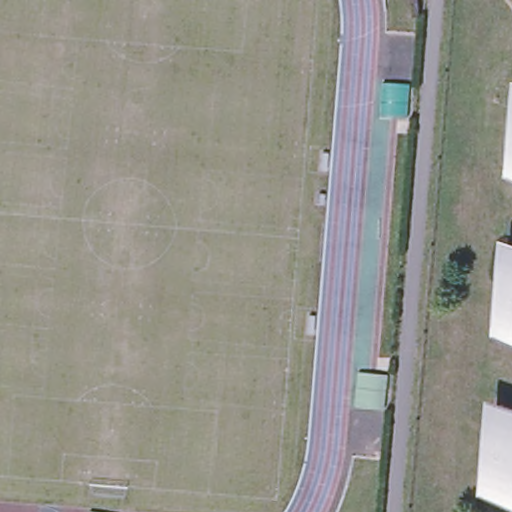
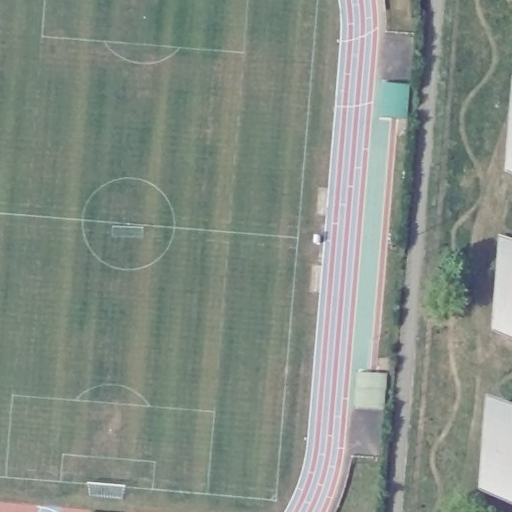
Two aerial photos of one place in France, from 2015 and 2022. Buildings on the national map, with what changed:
unchanged [(499,286),(512,250),(512,290),(499,286)]
unchanged [(502,336),(512,306),(512,339),(502,336)]
unchanged [(489,495),(504,452),(487,446),(500,410),(512,414),(512,503),(489,495)]

